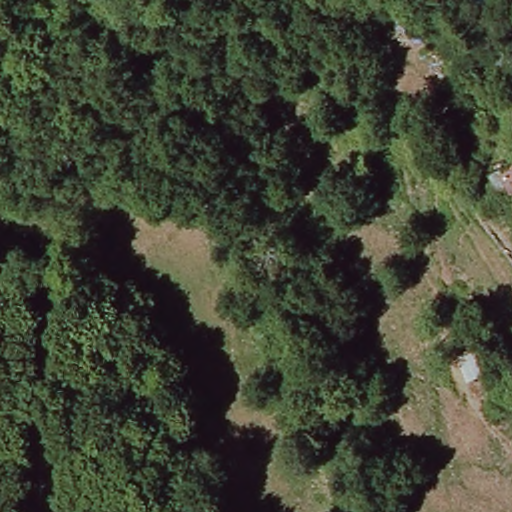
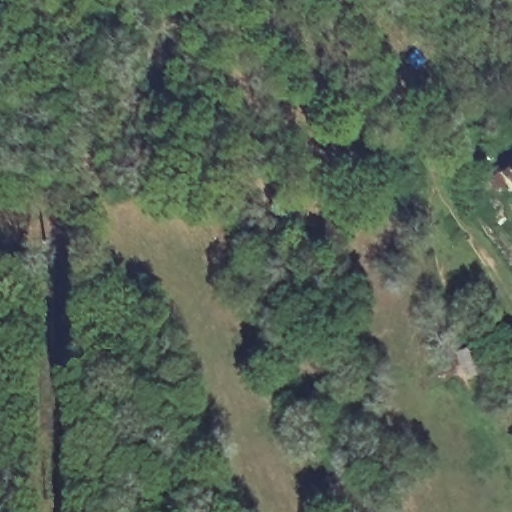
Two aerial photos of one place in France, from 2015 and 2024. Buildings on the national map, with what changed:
unchanged [(511,188),(505,190),(502,186),(492,191),(484,179),(510,162),(512,162),(512,190),(511,188)]

